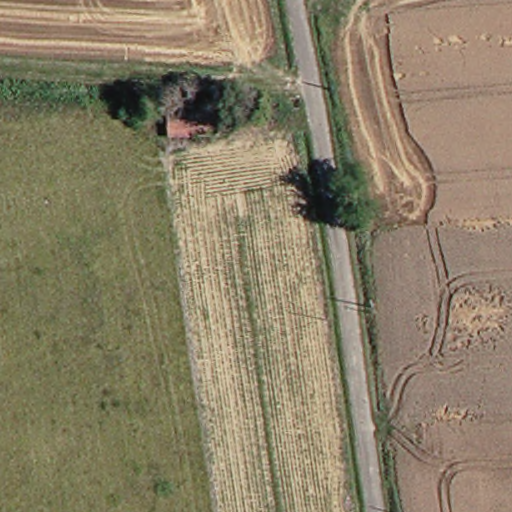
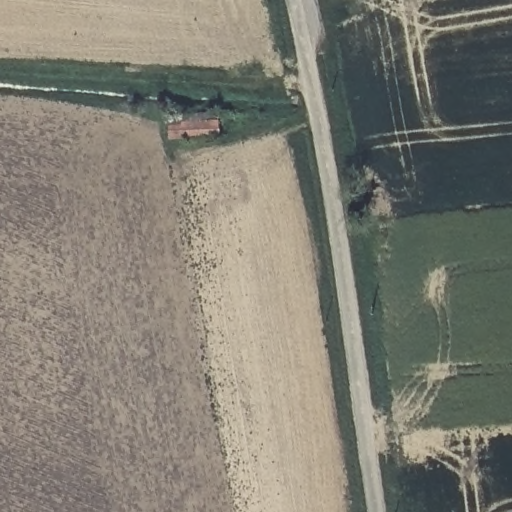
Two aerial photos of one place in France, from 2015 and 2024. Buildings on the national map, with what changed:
unchanged [(165,112),(220,114),(219,142),(164,140),(165,112)]

